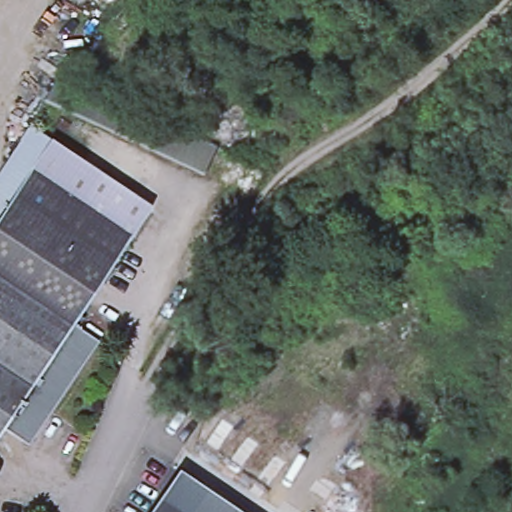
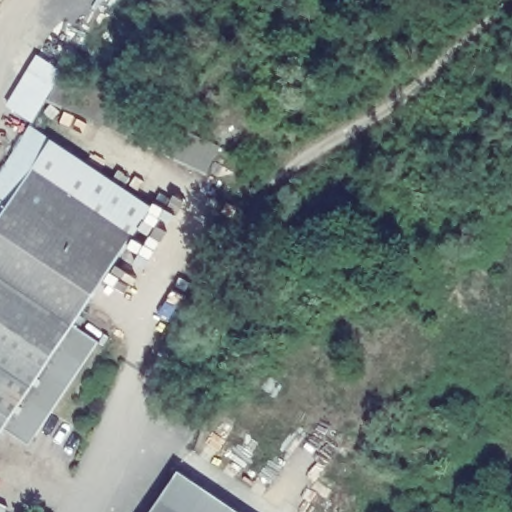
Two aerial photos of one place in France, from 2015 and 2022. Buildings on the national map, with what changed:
unchanged [(208,140),(195,170),(56,103),(61,94),(73,75),(208,140)]
unchanged [(149,205),(69,324),(94,341),(27,441),(2,425),(0,429),(0,167),(28,124),(149,205)]
unchanged [(155,498),(175,470),(237,512),(175,512),(155,498)]
unchanged [(175,512),(146,512),(155,498),(175,512)]

